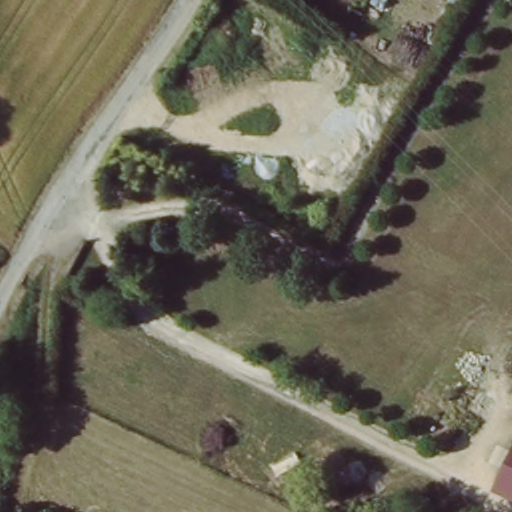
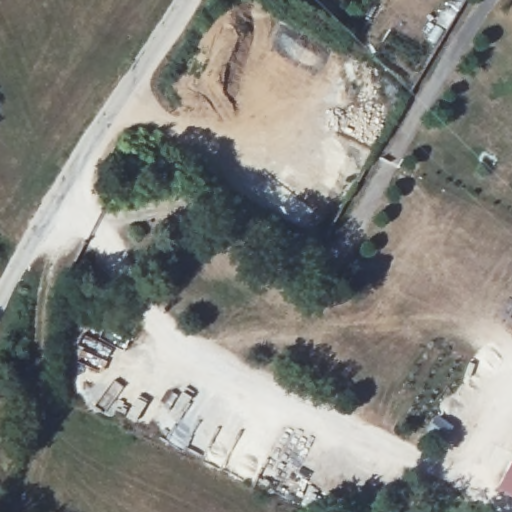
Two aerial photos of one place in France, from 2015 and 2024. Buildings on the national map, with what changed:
unchanged [(511,477),(512,474),(512,478),(511,477)]

